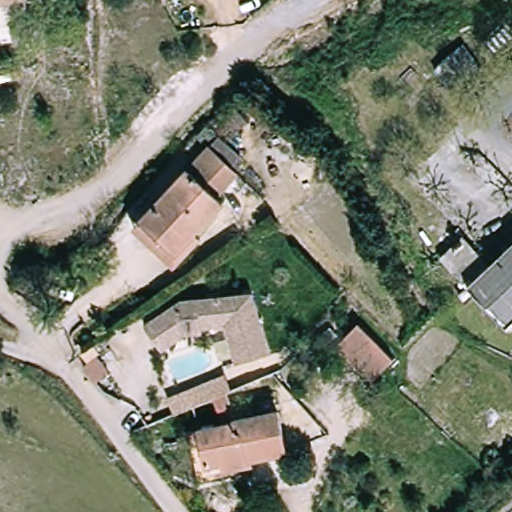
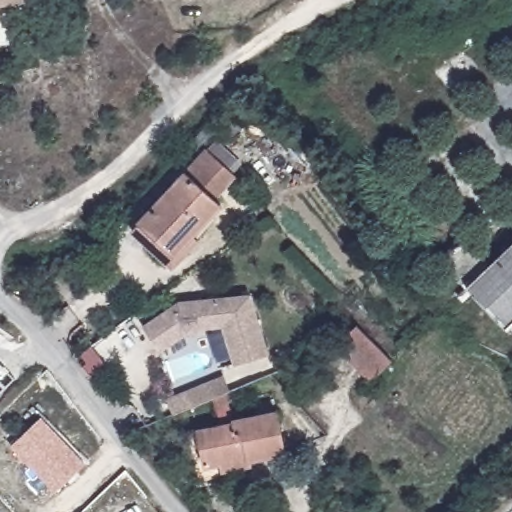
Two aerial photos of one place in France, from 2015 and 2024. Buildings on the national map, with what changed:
unchanged [(0,6),(0,0),(43,0),(0,6)]
unchanged [(512,32),(512,36),(510,34),(512,32)]
unchanged [(463,47),(482,71),(453,95),(434,71),(463,47)]
unchanged [(169,270),(128,232),(136,222),(204,151),(212,142),(237,166),(229,174),(231,177),(212,197),(220,205),(189,235),(197,242),(169,270)]
unchanged [(492,267),(512,249),(512,325),(509,327),(443,258),(464,239),(492,267)]
unchanged [(143,323),(179,299),(250,292),(269,352),(236,362),(224,324),(199,325),(200,331),(184,332),(159,348),(143,323)]
unchanged [(355,327),(385,358),(388,362),(367,383),(333,348),(355,327)]
unchanged [(94,357),(107,372),(94,383),(81,367),(94,357)]
new [(14,379),(0,392),(0,364),(14,379)]
new [(217,373),(223,389),(167,410),(161,394),(217,373)]
unchanged [(256,453),(212,461),(206,425),(248,417),(248,412),(284,407),(292,450),(256,456),(256,453)]
new [(52,494),(10,446),(42,416),(86,463),(52,494)]
unchanged [(212,461),(256,453),(256,456),(257,463),(256,467),(210,477),(205,472),(197,425),(206,425),(212,461)]

